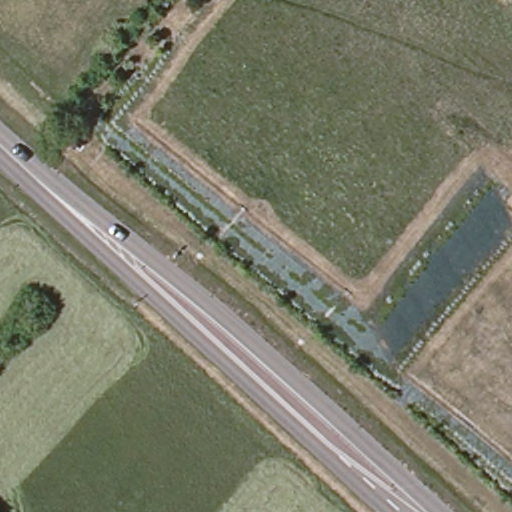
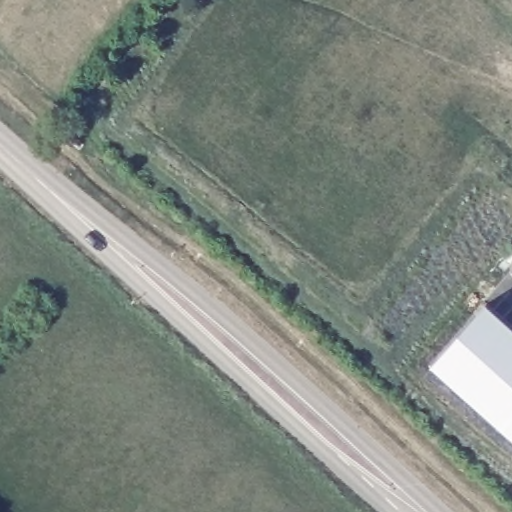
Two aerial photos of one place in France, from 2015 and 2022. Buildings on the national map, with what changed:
new [(427,367),(482,305),(512,332),(512,444),(427,367)]

